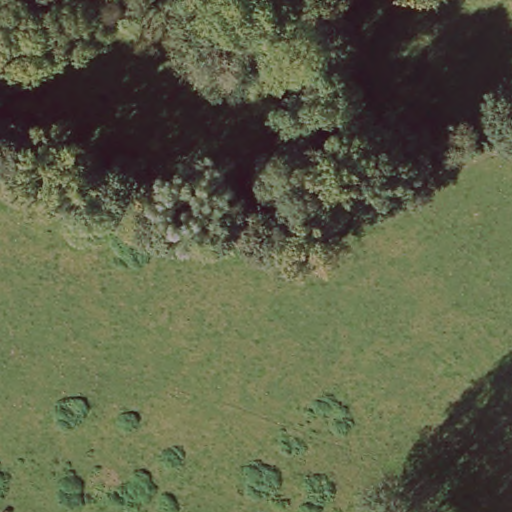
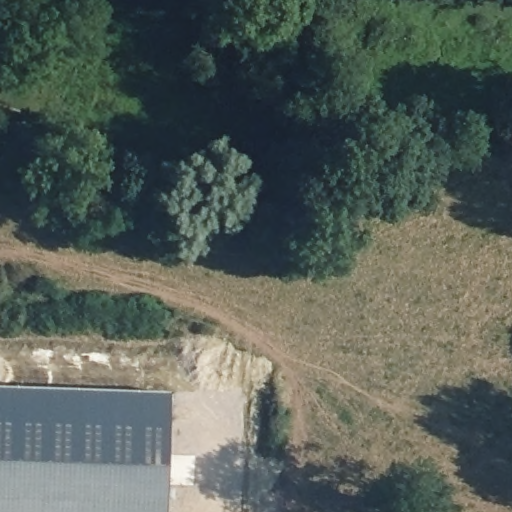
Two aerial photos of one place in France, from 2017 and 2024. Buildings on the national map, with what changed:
new [(168,395),(165,512),(0,512),(0,390),(168,395)]

